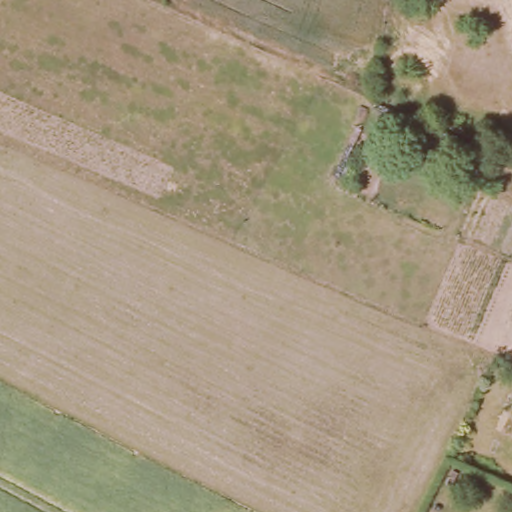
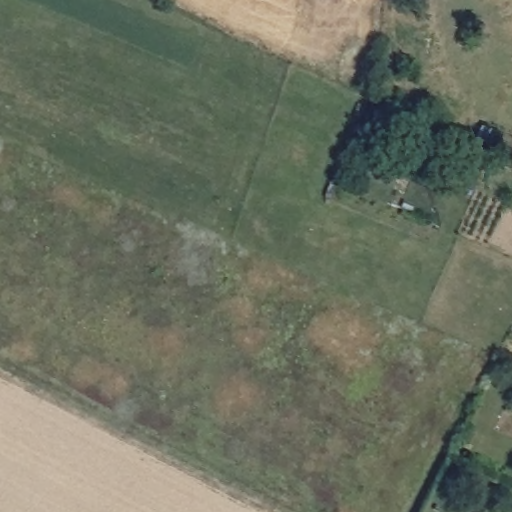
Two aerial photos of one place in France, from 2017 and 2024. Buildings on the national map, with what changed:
[]

